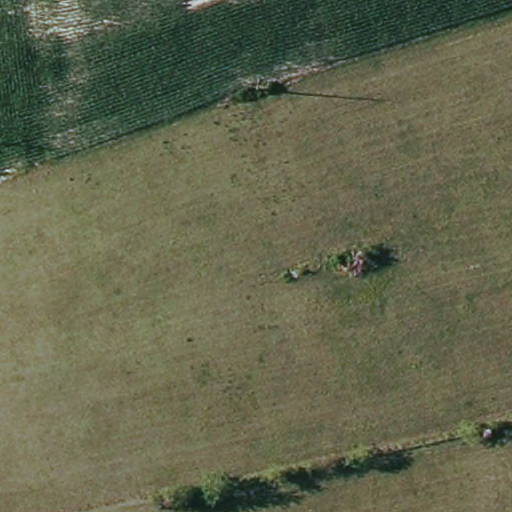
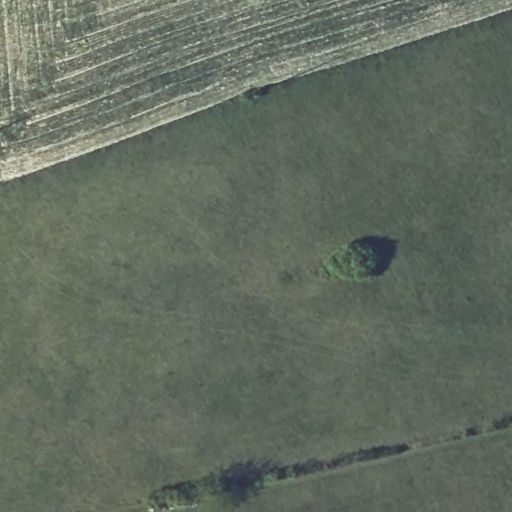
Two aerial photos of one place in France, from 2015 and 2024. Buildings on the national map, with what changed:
[]

